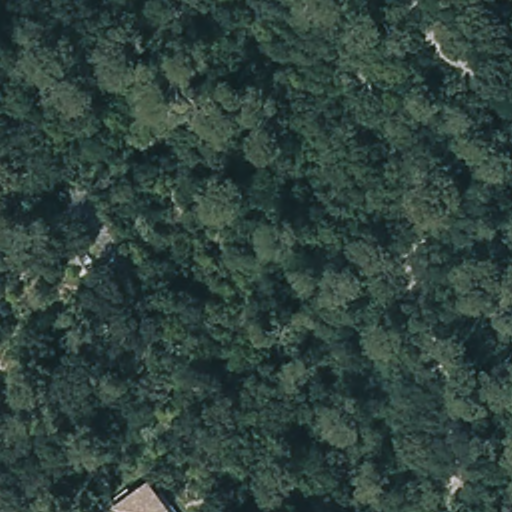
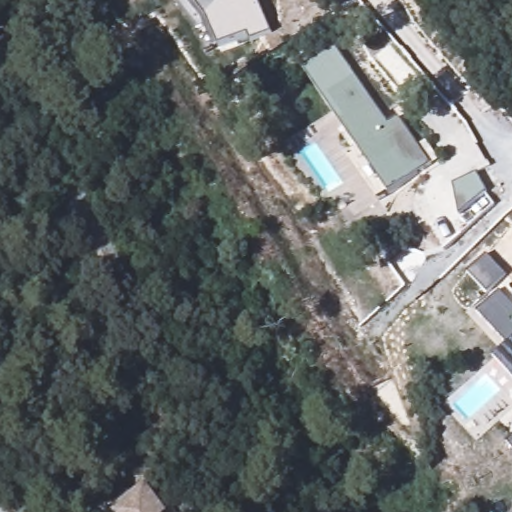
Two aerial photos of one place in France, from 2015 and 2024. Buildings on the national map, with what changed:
new [(271,33),(238,48),(235,40),(213,50),(212,47),(204,53),(190,21),(177,6),(168,0),(257,0),(271,33)]
new [(335,46),(388,124),(398,117),(418,146),(425,141),(439,161),(388,193),(378,201),(345,152),(354,144),(301,69),(335,46)]
new [(477,173),(487,193),(459,217),(452,184),(477,173)]
new [(504,273),(486,292),(466,271),(486,254),(504,273)]
new [(512,306),(512,316),(509,319),(512,323),(512,378),(494,358),(509,345),(476,310),(498,290),(512,306)]
unchanged [(144,482),(161,507),(158,510),(159,512),(112,512),(108,506),(144,482)]

